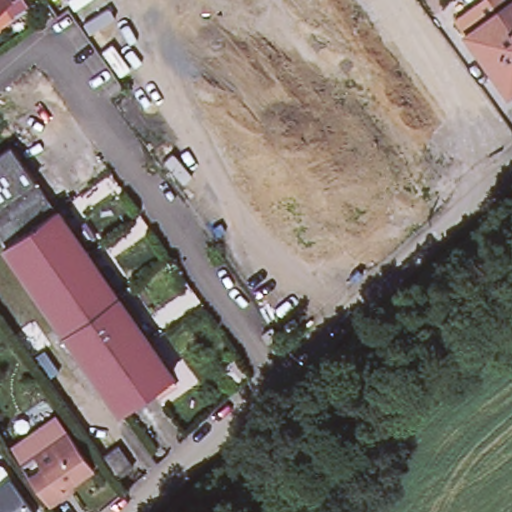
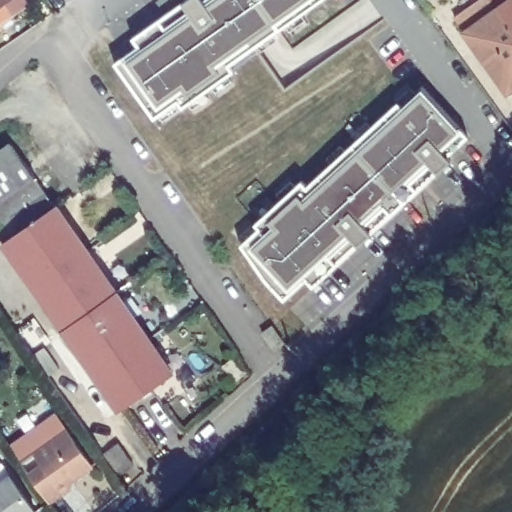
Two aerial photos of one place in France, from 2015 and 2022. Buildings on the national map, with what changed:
unchanged [(0,0),(8,0),(2,4),(11,16),(0,24),(0,0)]
new [(115,64),(138,47),(133,38),(183,2),(186,0),(323,0),(230,65),(234,72),(182,109),(177,103),(153,120),(115,64)]
unchanged [(457,20),(484,0),(512,0),(512,90),(509,92),(467,34),(457,20)]
new [(263,280),(241,245),(260,229),(256,224),(302,181),(307,186),(398,102),(403,106),(422,90),(462,131),(467,137),(447,156),(450,160),(436,172),(372,233),(358,245),(313,286),(307,279),(285,300),(263,280)]
unchanged [(35,172),(0,196),(0,152),(15,142),(35,172)]
unchanged [(0,196),(35,172),(55,202),(2,238),(0,234),(0,196)]
unchanged [(2,238),(55,202),(115,287),(62,325),(2,238)]
unchanged [(62,325),(115,287),(122,298),(130,293),(138,305),(131,311),(140,325),(87,360),(62,325)]
unchanged [(140,325),(171,369),(118,405),(87,360),(140,325)]
unchanged [(65,495),(52,505),(25,465),(13,450),(28,438),(35,435),(60,416),(72,432),(96,467),(73,483),(68,482),(60,487),(65,495)]
unchanged [(107,457),(123,445),(137,466),(122,478),(107,457)]
unchanged [(11,472),(19,484),(39,512),(0,512),(0,473),(3,471),(11,472)]
unchanged [(135,473),(139,477),(130,485),(127,480),(135,473)]

